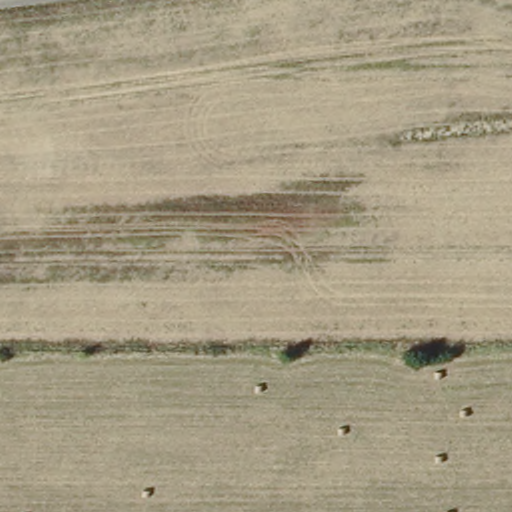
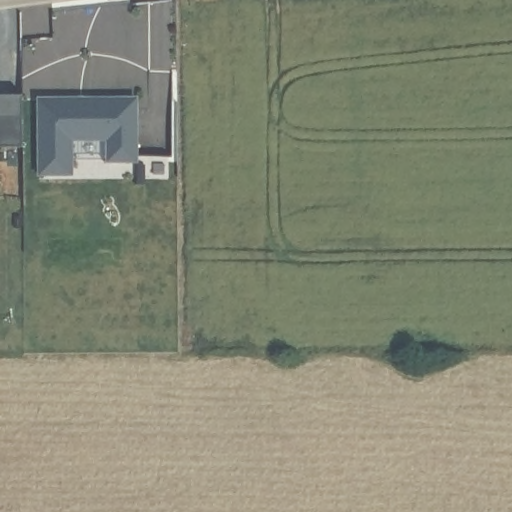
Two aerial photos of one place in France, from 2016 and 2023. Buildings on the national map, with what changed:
new [(22,145),(0,146),(0,93),(22,93),(22,145)]
new [(37,97),(137,97),(138,163),(107,162),(107,141),(72,141),(73,174),(38,175),(37,97)]

